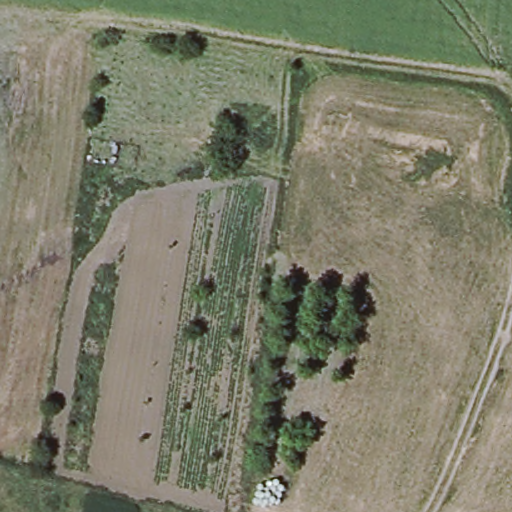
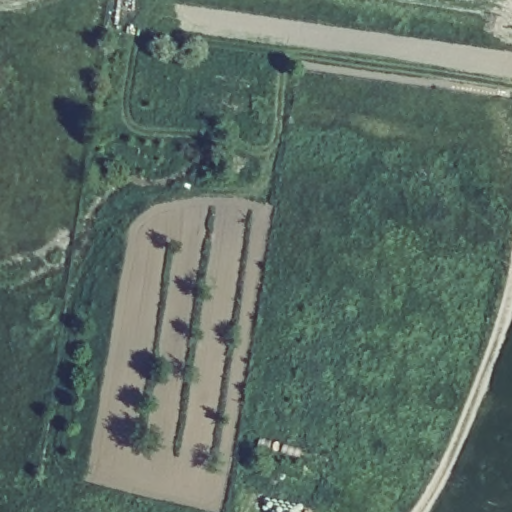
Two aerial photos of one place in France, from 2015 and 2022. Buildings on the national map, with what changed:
[]

